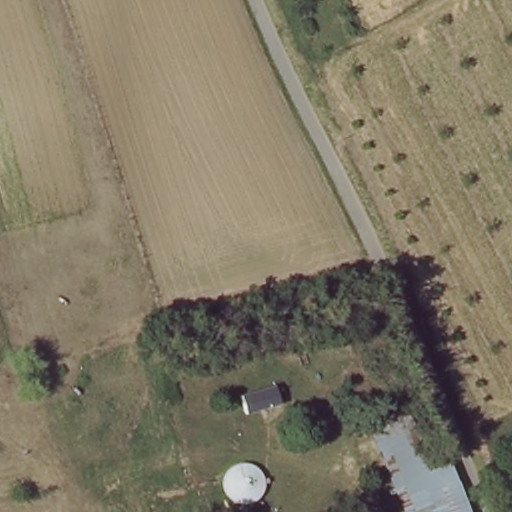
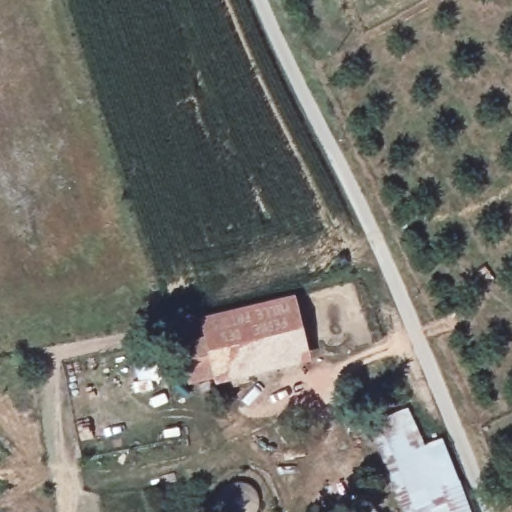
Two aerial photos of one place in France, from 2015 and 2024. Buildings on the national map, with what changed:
new [(214,377),(189,383),(179,344),(205,337),(200,317),(294,294),(311,360),(216,382),(214,377)]
unchanged [(425,401),(470,512),(406,512),(370,422),(425,401)]

